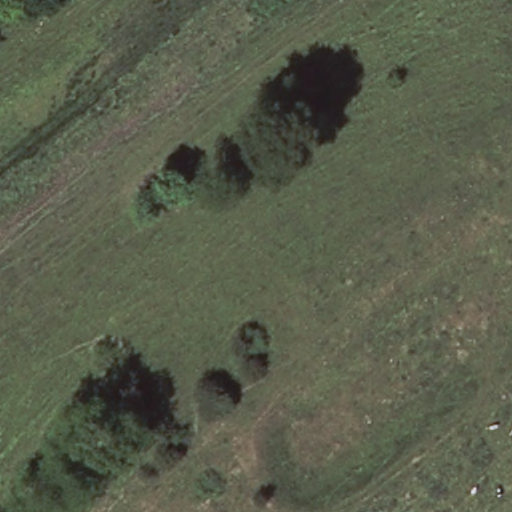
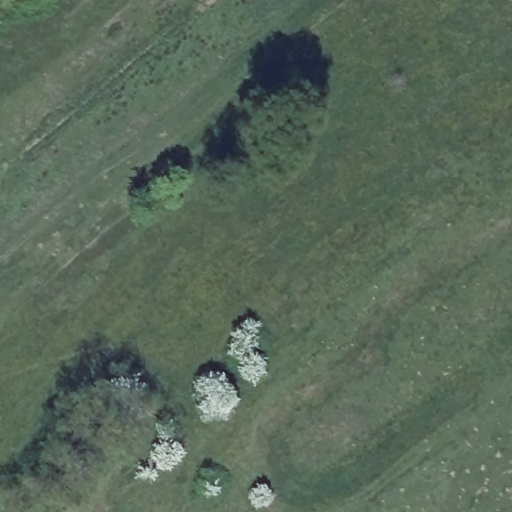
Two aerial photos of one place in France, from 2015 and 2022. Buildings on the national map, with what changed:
[]

